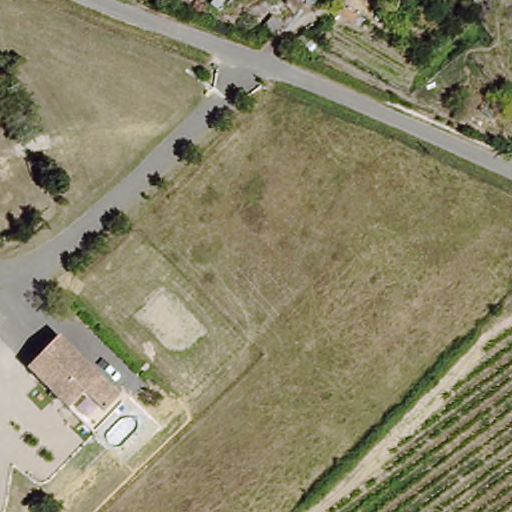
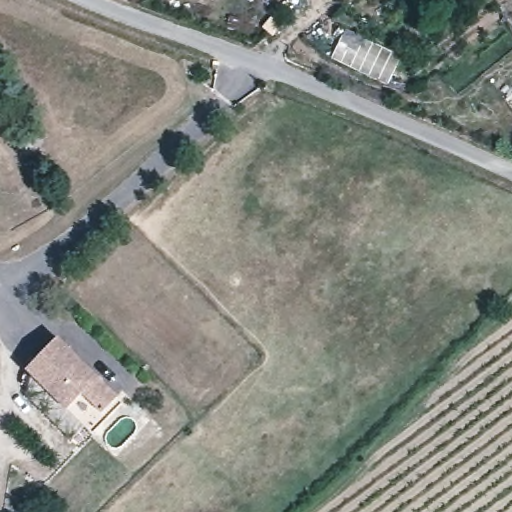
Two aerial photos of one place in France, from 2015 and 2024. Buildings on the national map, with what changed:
unchanged [(89,366),(120,397),(90,427),(38,376),(29,367),(34,362),(59,337),(89,366)]

